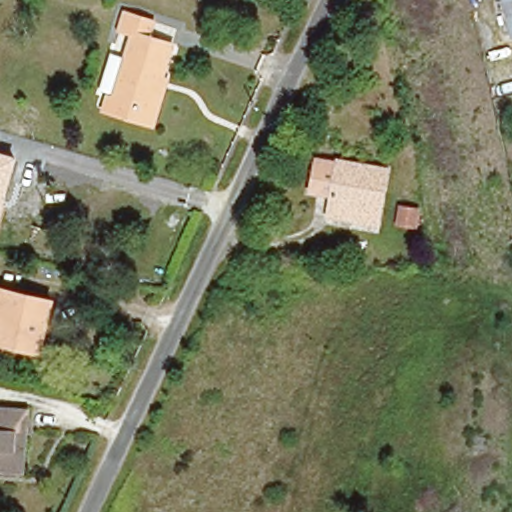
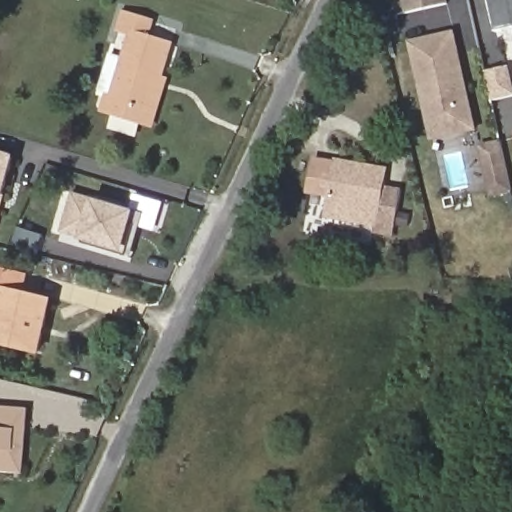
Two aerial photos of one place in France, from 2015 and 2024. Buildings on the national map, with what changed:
new [(451,2),(407,11),(405,0),(450,0),(451,2)]
new [(512,30),(498,33),(491,0),(512,0),(512,30)]
unchanged [(152,121),(109,106),(114,92),(135,31),(122,26),(128,12),(152,20),(148,32),(171,41),(159,74),(168,77),(152,121)]
new [(456,31),(479,131),(432,141),(411,41),(456,31)]
new [(512,77),(512,96),(492,101),(485,72),(509,66),(512,77)]
new [(479,146),(502,141),(512,184),(512,193),(491,197),(479,146)]
unchanged [(6,192),(6,197),(0,221),(0,152),(18,158),(6,192)]
unchanged [(332,197),(305,194),(306,161),(384,169),(381,213),(331,210),(332,197)]
new [(134,256),(128,255),(84,242),(86,235),(63,228),(75,191),(134,209),(147,212),(134,256)]
unchanged [(51,295),(40,346),(14,341),(0,337),(0,283),(51,295)]
unchanged [(23,408),(21,467),(0,465),(0,407),(23,408)]

